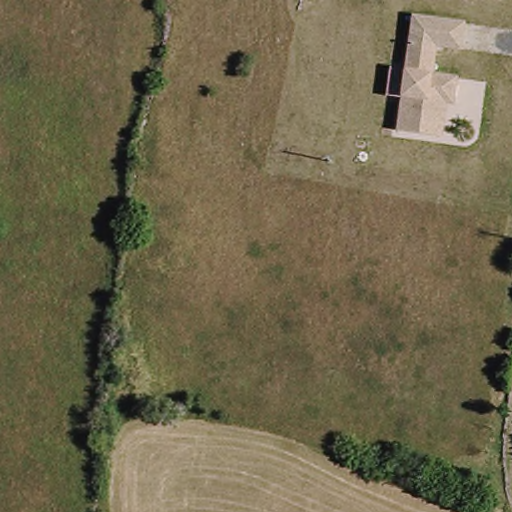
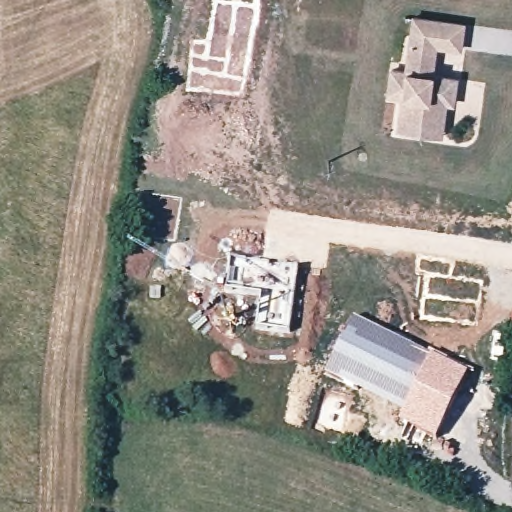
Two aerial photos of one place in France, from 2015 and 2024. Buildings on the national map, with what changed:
new [(211,0),(254,0),(242,93),(184,87),(189,36),(205,38),(211,0)]
unchanged [(386,77),(411,78),(412,23),(462,24),(461,49),(436,48),(436,78),(461,79),(460,104),(446,103),(445,139),(410,138),(411,103),(386,102),(386,77)]
new [(230,256),(300,266),(291,334),(253,328),(257,296),(226,291),(230,256)]
new [(352,316),(469,371),(435,439),(399,420),(402,414),(324,375),(352,316)]

